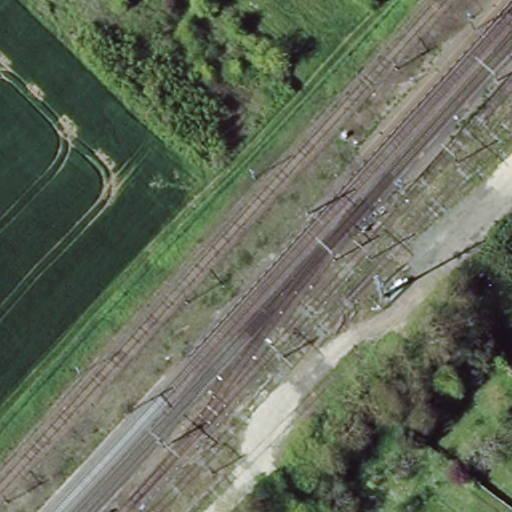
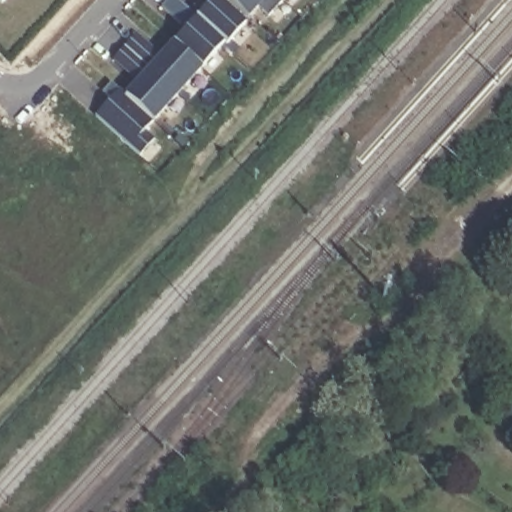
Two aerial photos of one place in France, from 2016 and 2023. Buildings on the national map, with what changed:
new [(1,0),(8,0),(4,4),(1,0)]
new [(223,41),(202,67),(204,70),(155,121),(145,129),(154,138),(141,154),(95,113),(111,96),(102,89),(111,81),(126,93),(136,81),(112,60),(137,32),(161,54),(187,28),(162,6),(167,0),(180,0),(192,10),(200,1),(207,7),(212,0),(221,0),(247,24),(229,42),(223,41)]
new [(259,6),(250,17),(231,0),(282,0),(267,16),(259,6)]
unchanged [(325,459),(316,452),(331,436),(338,444),(325,459)]

